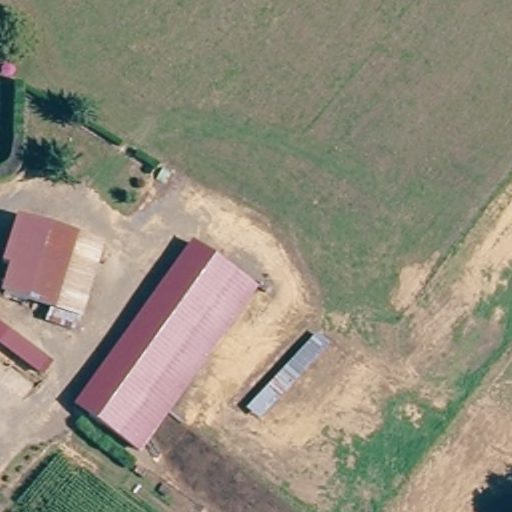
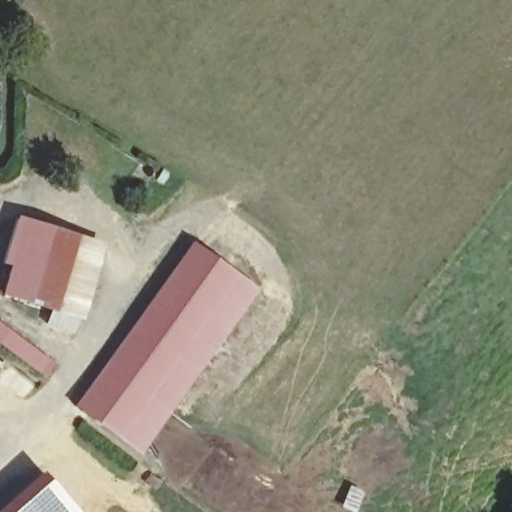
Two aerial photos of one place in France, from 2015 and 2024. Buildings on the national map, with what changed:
unchanged [(59,238),(95,249),(72,322),(35,311),(0,300),(8,271),(0,269),(0,264),(12,224),(59,238)]
unchanged [(191,241),(258,288),(140,454),(73,405),(191,241)]
unchanged [(0,345),(0,322),(52,361),(42,375),(0,345)]
unchanged [(244,407),(314,331),(329,345),(260,420),(244,407)]
new [(27,485),(30,482),(33,485),(45,476),(77,512),(0,512),(0,506),(25,483),(27,485)]

